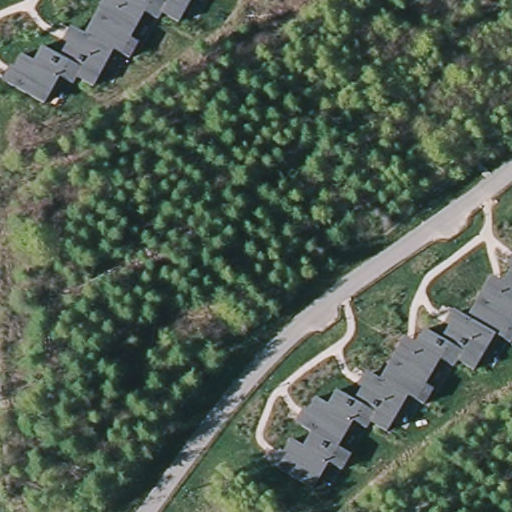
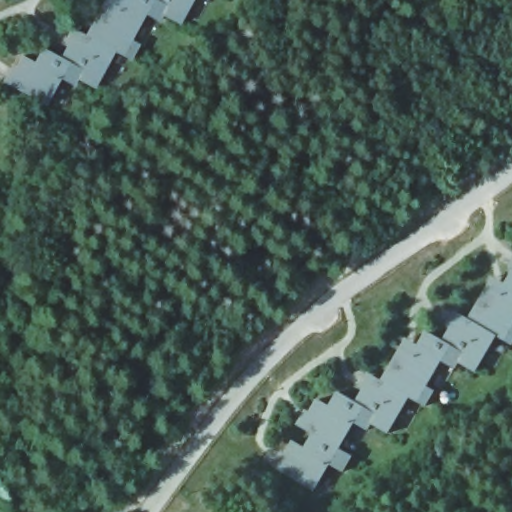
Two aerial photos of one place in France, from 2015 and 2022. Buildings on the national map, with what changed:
unchanged [(146,14),(122,59),(115,54),(95,96),(62,81),(49,104),(2,78),(8,64),(12,68),(20,54),(31,60),(40,44),(57,54),(72,28),(84,33),(100,0),(195,0),(182,28),(146,14)]
unchanged [(506,346),(495,340),(474,378),(444,366),(418,408),(410,403),(387,441),(355,427),(315,494),(273,470),(313,398),(328,404),(337,390),(354,401),(366,374),(382,379),(403,339),(415,345),(425,332),(438,340),(453,312),(467,320),(492,277),(503,282),(512,265),(512,335),(506,346)]

